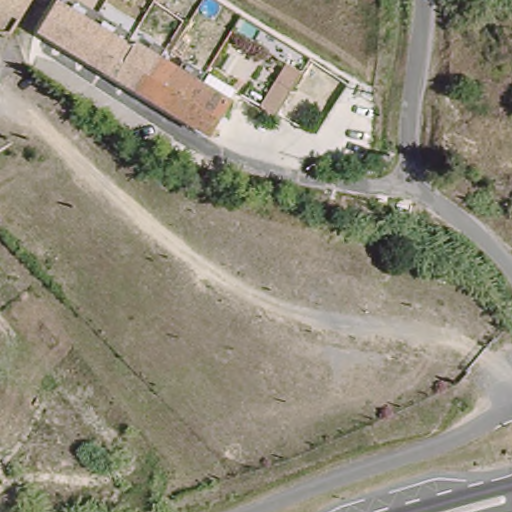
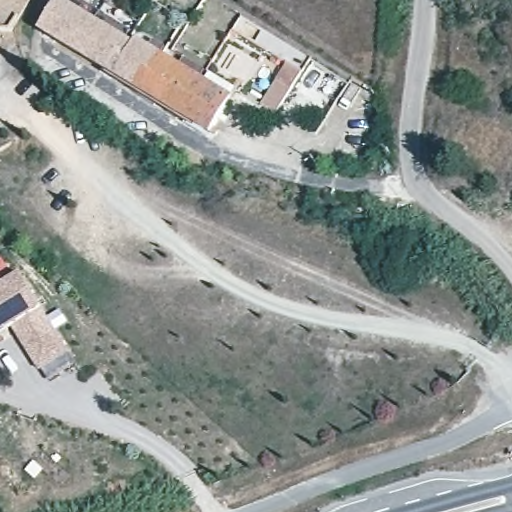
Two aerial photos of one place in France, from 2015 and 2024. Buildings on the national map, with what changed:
unchanged [(22,33),(0,31),(0,0),(42,0),(22,33)]
unchanged [(132,27),(139,31),(115,73),(36,30),(55,0),(64,0),(128,33),(132,27)]
unchanged [(211,125),(115,73),(139,31),(235,83),(211,125)]
unchanged [(327,160),(331,140),(349,144),(347,165),(327,160)]
new [(42,307),(69,350),(38,368),(12,327),(0,335),(0,286),(20,273),(42,307)]

